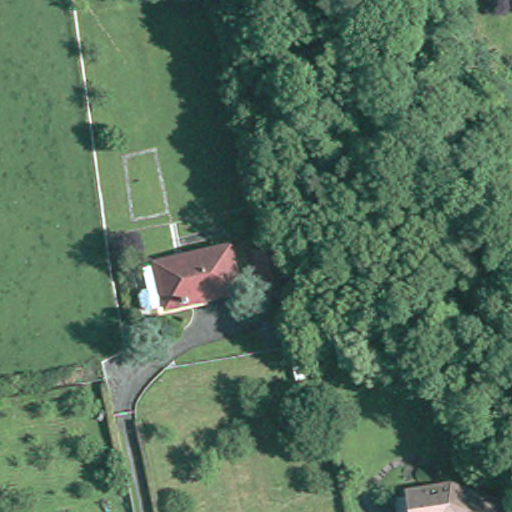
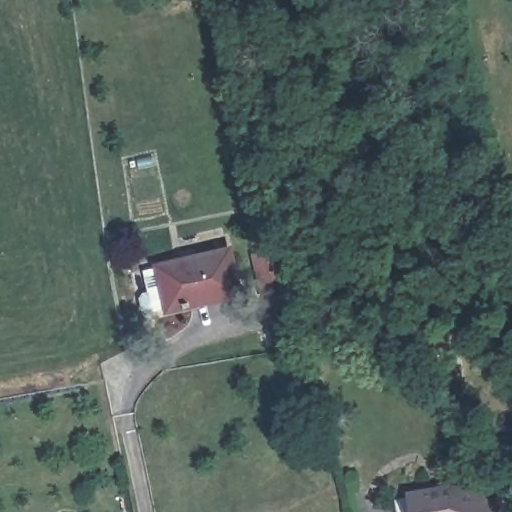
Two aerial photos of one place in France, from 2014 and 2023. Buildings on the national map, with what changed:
unchanged [(238,244),(247,285),(160,306),(153,301),(151,295),(158,283),(154,263),(238,244)]
unchanged [(263,296),(254,252),(280,247),(289,290),(263,296)]
unchanged [(420,512),(415,484),(458,477),(502,493),(496,512),(420,512)]

